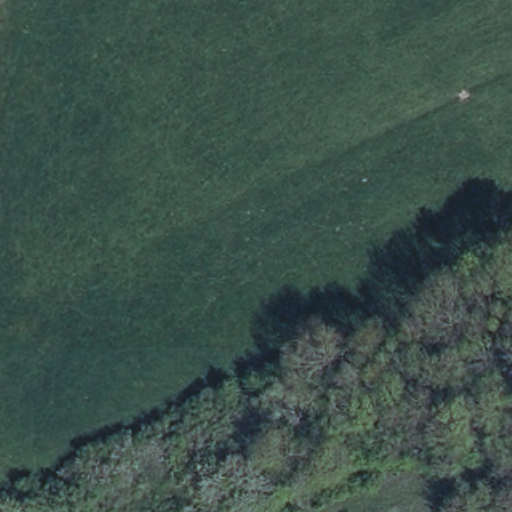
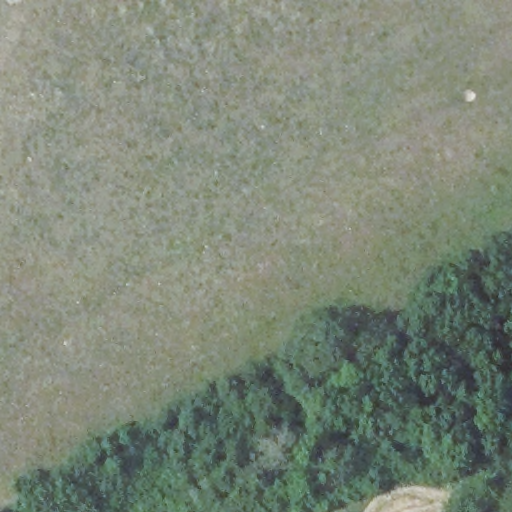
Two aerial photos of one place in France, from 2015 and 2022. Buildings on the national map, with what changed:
[]

